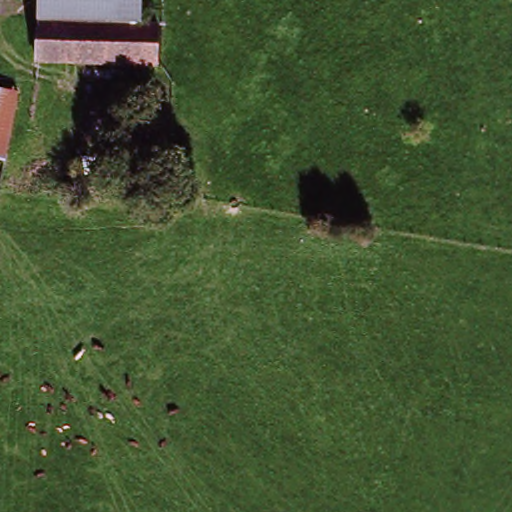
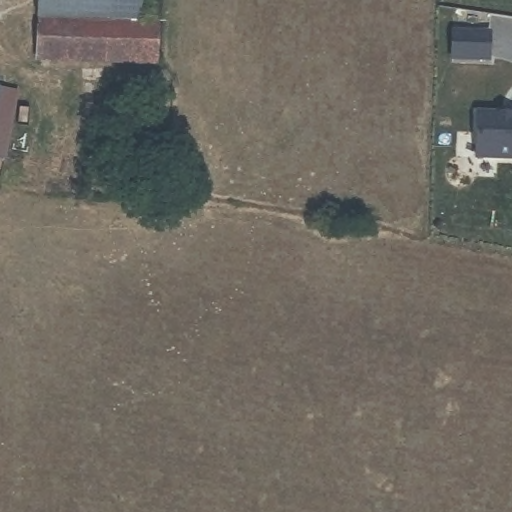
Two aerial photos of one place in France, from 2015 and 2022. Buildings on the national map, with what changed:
unchanged [(42,0),(143,0),(141,25),(41,17),(42,0)]
unchanged [(41,17),(141,25),(160,27),(157,70),(37,59),(41,17)]
new [(492,29),(491,62),(451,62),(451,30),(492,29)]
unchanged [(0,160),(0,89),(19,92),(5,161),(0,160)]
new [(476,159),(477,110),(512,112),(512,160),(476,159)]

